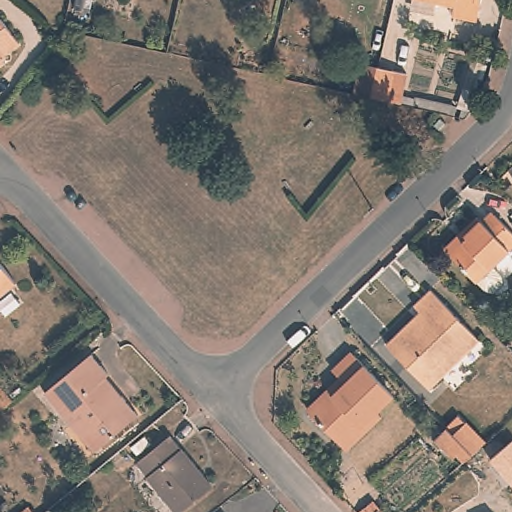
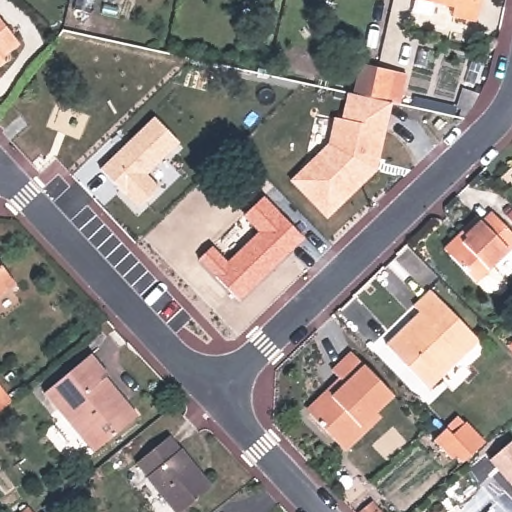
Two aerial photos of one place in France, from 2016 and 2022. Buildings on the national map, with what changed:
unchanged [(75,0),(91,0),(88,12),(74,9),(75,0)]
unchanged [(449,18),(450,9),(414,0),(479,0),(473,24),(449,18)]
unchanged [(0,57),(0,12),(21,39),(7,51),(10,56),(0,64),(0,57)]
new [(327,219),(290,180),(327,145),(333,117),(341,119),(346,94),(355,96),(361,68),(375,70),(402,76),(397,105),(367,99),(390,104),(376,171),(327,219)]
demolished [(355,96),(361,68),(375,70),(402,76),(397,105),(367,99),(355,96)]
new [(148,174),(159,187),(137,208),(100,169),(155,117),(179,144),(148,174)]
unchanged [(435,127),(443,120),(448,126),(440,133),(435,127)]
new [(265,199),(302,241),(238,300),(199,260),(265,199)]
unchanged [(498,257),(506,264),(505,275),(495,284),(485,284),(452,250),(446,244),(477,214),(481,217),(491,207),(495,210),(512,228),(512,243),(498,257)]
unchanged [(0,297),(0,258),(19,282),(0,297)]
unchanged [(409,367),(396,354),(387,344),(400,332),(421,313),(415,306),(431,291),(480,341),(443,377),(430,389),(409,367)]
unchanged [(345,449),(338,444),(307,413),(339,381),(329,370),(347,353),(388,394),(372,410),(378,416),(345,449)]
unchanged [(80,441),(42,397),(90,358),(107,378),(104,382),(135,419),(97,450),(91,454),(80,441)]
unchanged [(0,404),(0,382),(14,399),(4,409),(0,411),(0,404)]
unchanged [(461,463),(453,455),(450,459),(433,441),(445,429),(470,456),(461,463)]
unchanged [(212,487),(182,512),(178,512),(135,463),(168,436),(212,487)]
new [(512,445),(512,484),(492,461),(512,445)]
unchanged [(31,504),(38,512),(23,512),(31,504)]

